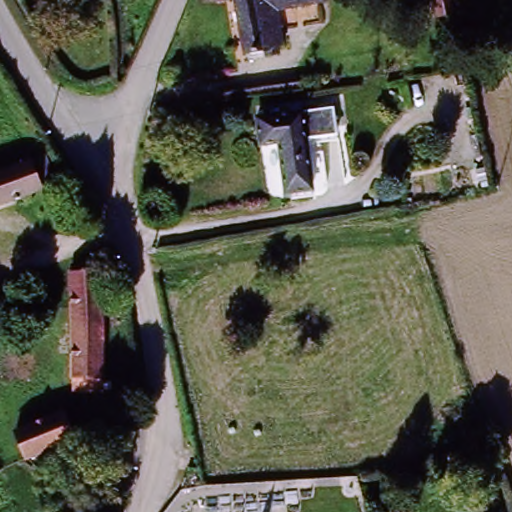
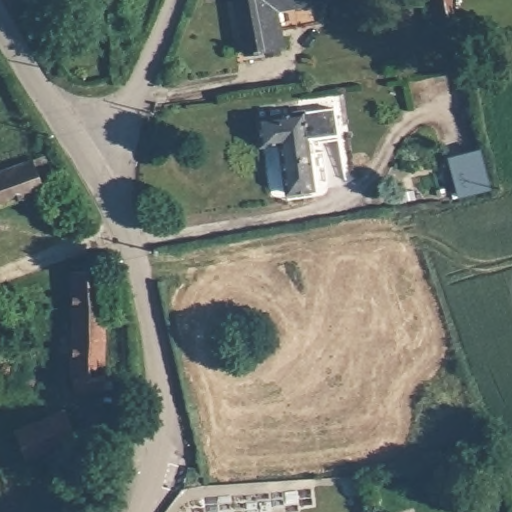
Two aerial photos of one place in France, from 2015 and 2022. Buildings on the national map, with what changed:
unchanged [(277,55),(259,56),(258,46),(242,50),(233,0),(296,0),(276,5),(286,44),(276,46),(277,55)]
unchanged [(429,0),(453,0),(454,6),(431,8),(429,0)]
unchanged [(286,197),(276,146),(258,151),(252,122),(329,106),(334,129),(301,136),(313,191),(286,197)]
unchanged [(51,178),(0,201),(0,160),(34,144),(51,178)]
new [(491,187),(459,197),(450,154),(482,147),(491,187)]
unchanged [(78,394),(70,275),(95,273),(105,392),(78,394)]
unchanged [(68,453),(60,453),(19,457),(16,418),(65,414),(68,453)]

